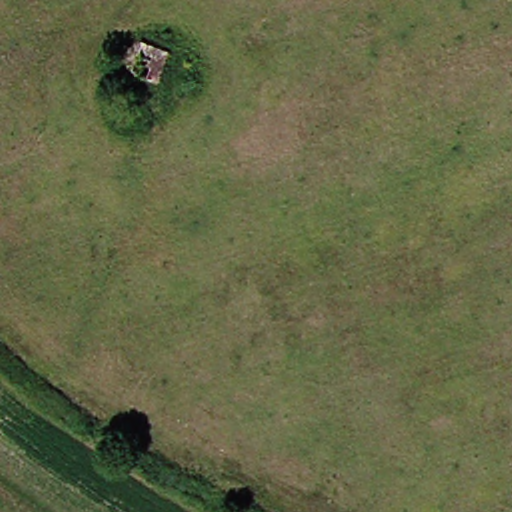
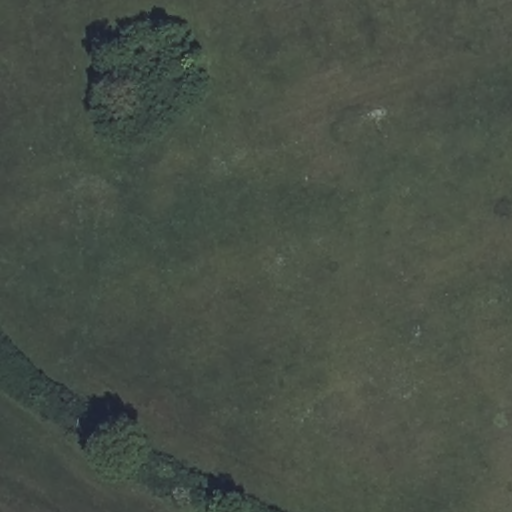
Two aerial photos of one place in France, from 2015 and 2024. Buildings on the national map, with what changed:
unchanged [(129,71),(141,37),(172,49),(160,83),(129,71)]

